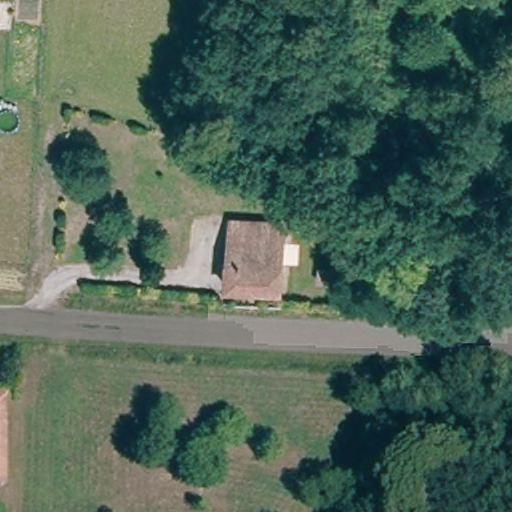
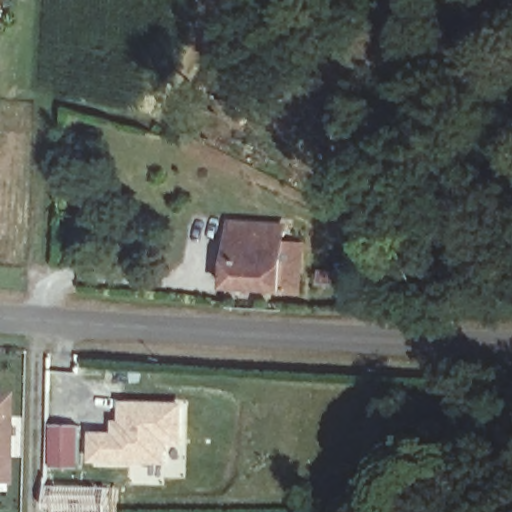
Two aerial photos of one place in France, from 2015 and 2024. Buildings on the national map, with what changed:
unchanged [(290,232),(284,294),(233,291),(240,228),(290,232)]
unchanged [(371,267),(371,278),(348,277),(349,266),(371,267)]
unchanged [(0,485),(0,400),(5,400),(4,423),(2,462),(1,485),(0,485)]
new [(167,445),(165,465),(90,462),(92,433),(113,433),(114,422),(120,422),(121,402),(183,403),(181,445),(167,445)]
new [(80,428),(79,471),(50,471),(50,428),(80,428)]

